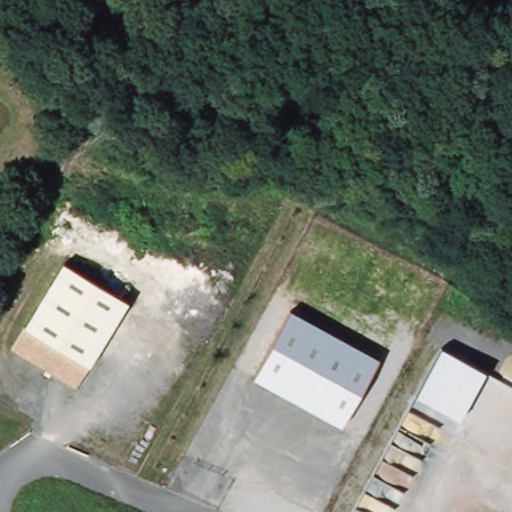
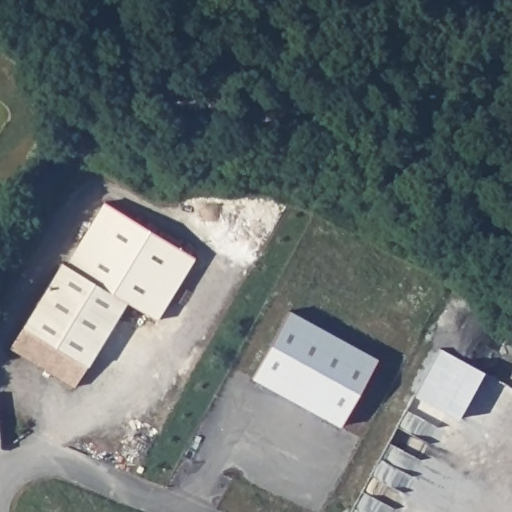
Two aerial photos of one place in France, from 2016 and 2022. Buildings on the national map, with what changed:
new [(196,256),(159,319),(127,300),(67,263),(104,201),(196,256)]
unchanged [(11,347),(63,261),(127,300),(76,386),(11,347)]
unchanged [(254,377),(290,310),(380,358),(343,425),(254,377)]

